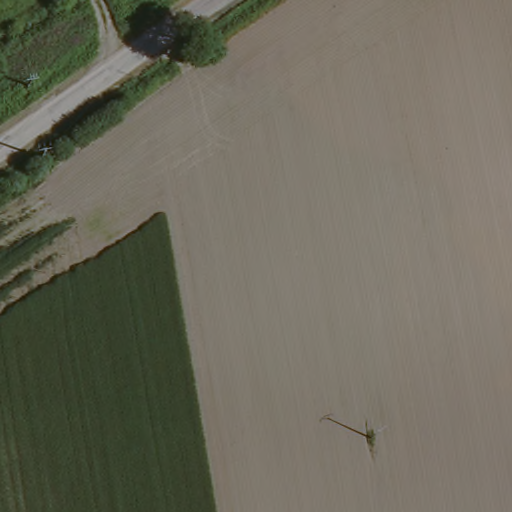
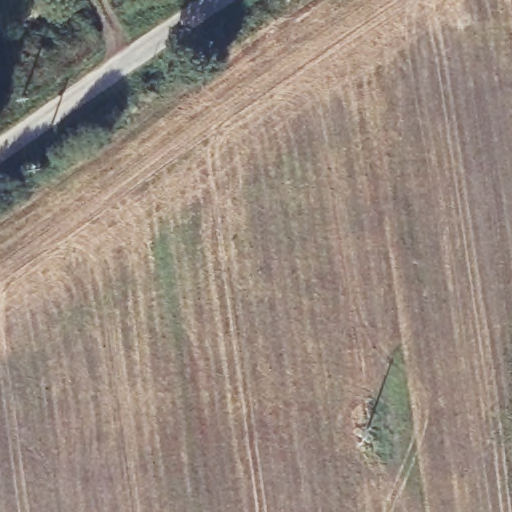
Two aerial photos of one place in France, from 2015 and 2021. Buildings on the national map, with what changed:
unchanged [(2,91),(13,83),(20,94),(9,101),(2,91)]

